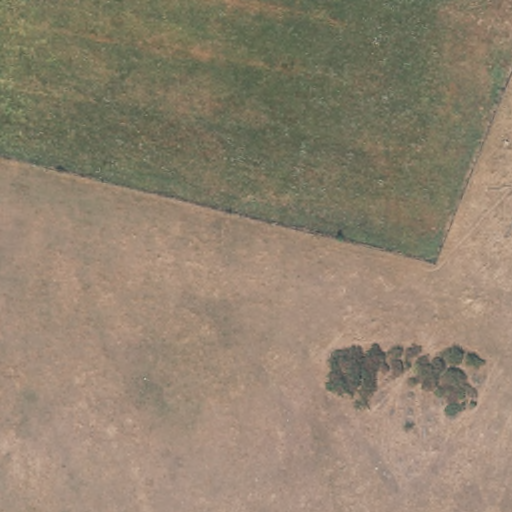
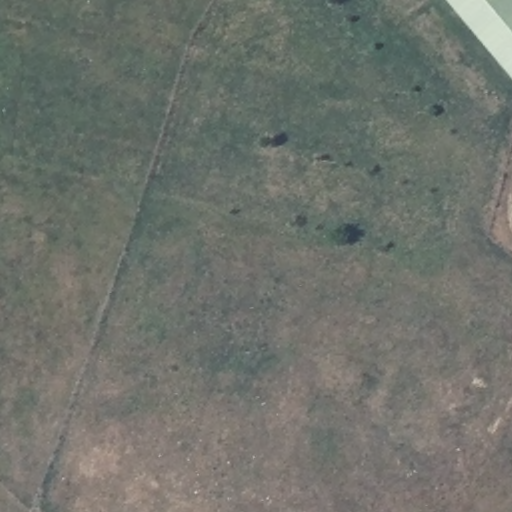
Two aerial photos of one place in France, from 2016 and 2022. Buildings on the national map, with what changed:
new [(512,80),(446,0),(512,0),(512,80)]

